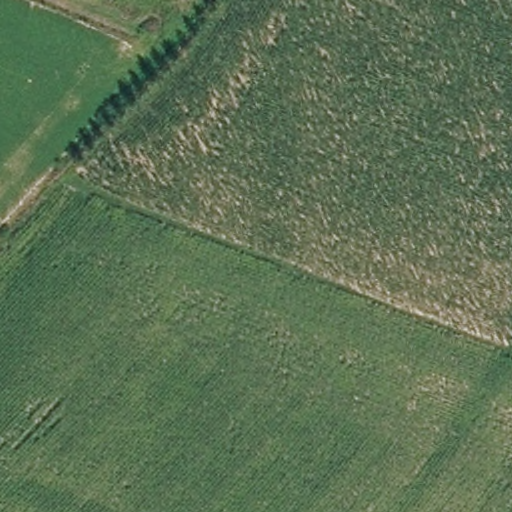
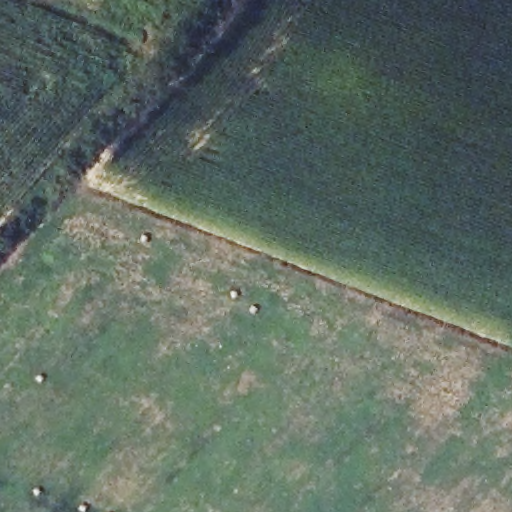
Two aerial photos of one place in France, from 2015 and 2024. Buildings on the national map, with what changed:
[]

